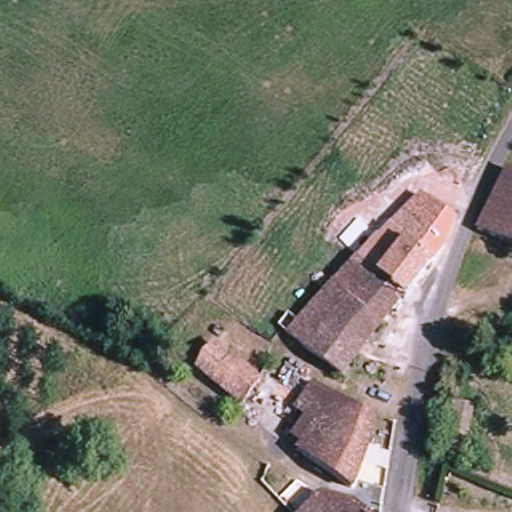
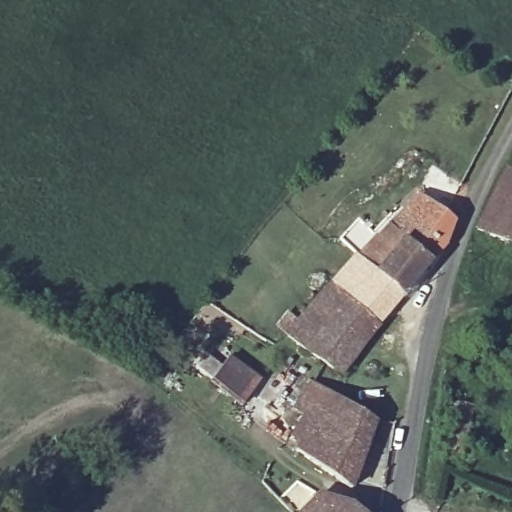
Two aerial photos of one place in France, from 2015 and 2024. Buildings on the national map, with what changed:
unchanged [(509,167),(512,168),(512,242),(480,229),(509,167)]
unchanged [(413,197),(450,222),(437,250),(401,293),(359,258),(413,197)]
unchanged [(336,377),(317,363),(311,372),(272,349),(263,342),(280,320),(292,331),(359,258),(401,293),(336,377)]
unchanged [(208,345),(241,368),(254,379),(238,403),(186,371),(208,345)]
unchanged [(295,443),(287,438),(299,420),(287,413),(303,386),(372,421),(352,472),(345,488),(288,454),(295,443)]
unchanged [(464,457),(449,452),(457,408),(472,411),(464,457)]
unchanged [(315,493),(342,501),(355,512),(298,512),(315,493)]

